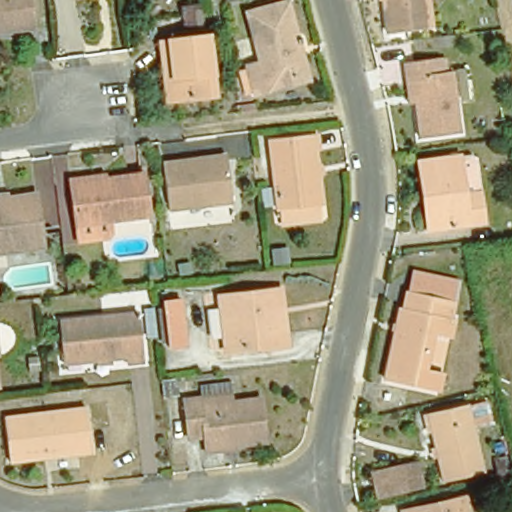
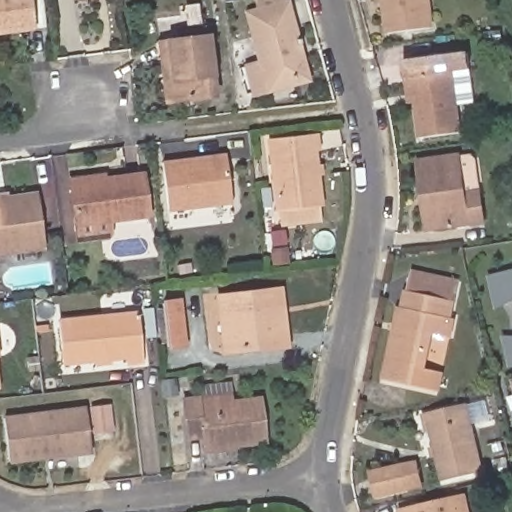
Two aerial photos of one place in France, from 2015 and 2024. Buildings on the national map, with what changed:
unchanged [(0,19),(0,0),(33,0),(34,15),(0,19)]
unchanged [(384,29),(381,0),(425,0),(427,23),(384,29)]
unchanged [(312,83),(269,95),(252,99),(245,74),(238,50),(254,46),(246,16),(286,5),(296,42),(302,41),(312,83)]
unchanged [(166,29),(183,28),(180,7),(188,6),(199,6),(201,26),(209,25),(215,83),(173,88),(166,89),(158,29),(166,29)]
unchanged [(440,64),(457,61),(459,76),(462,100),(456,101),(459,140),(419,144),(415,108),(406,108),(404,85),(403,67),(440,64)]
unchanged [(283,215),(281,198),(279,198),(273,126),(314,123),(321,194),(318,194),(320,211),(283,215)]
unchanged [(172,204),(166,156),(201,153),(229,150),(230,154),(234,197),(172,204)]
unchanged [(425,190),(421,156),(464,150),(468,189),(484,188),(487,217),(437,223),(429,223),(425,190)]
unchanged [(79,242),(77,226),(72,186),(71,182),(105,177),(106,182),(145,177),(150,216),(106,222),(108,238),(79,242)]
unchanged [(0,254),(0,200),(0,196),(9,196),(10,199),(35,196),(41,249),(0,254)]
unchanged [(283,261),(283,268),(270,269),(270,262),(283,261)]
new [(496,310),(489,275),(512,269),(512,302),(496,310)]
unchanged [(414,272),(460,283),(455,304),(409,295),(414,272)]
unchanged [(167,275),(193,273),(193,281),(167,284),(167,275)]
unchanged [(257,344),(255,341),(221,345),(216,291),(277,284),(280,304),(282,323),(284,342),(257,344)]
unchanged [(440,394),(433,393),(389,381),(403,311),(405,312),(409,295),(455,304),(451,321),(456,321),(452,341),(449,359),(441,358),(437,374),(445,376),(440,394)]
unchanged [(164,304),(182,303),(186,349),(168,349),(164,304)]
unchanged [(99,368),(99,361),(62,364),(59,324),(139,316),(144,364),(126,366),(125,358),(108,360),(108,367),(99,368)]
new [(510,368),(502,335),(512,335),(512,367),(510,368)]
unchanged [(13,378),(11,367),(24,366),(26,376),(13,378)]
unchanged [(202,447),(201,444),(200,430),(183,432),(178,394),(196,392),(194,381),(224,378),(226,396),(257,392),(263,437),(231,441),(232,445),(202,447)]
unchanged [(483,467),(445,475),(429,408),(467,400),(483,467)]
unchanged [(0,411),(80,402),(86,444),(4,453),(0,411)]
unchanged [(98,404),(99,420),(88,420),(87,404),(98,404)]
unchanged [(371,493),(366,468),(396,462),(398,472),(407,470),(411,483),(401,487),(371,493)]
unchanged [(402,501),(462,488),(467,487),(470,504),(472,512),(405,512),(402,501)]

